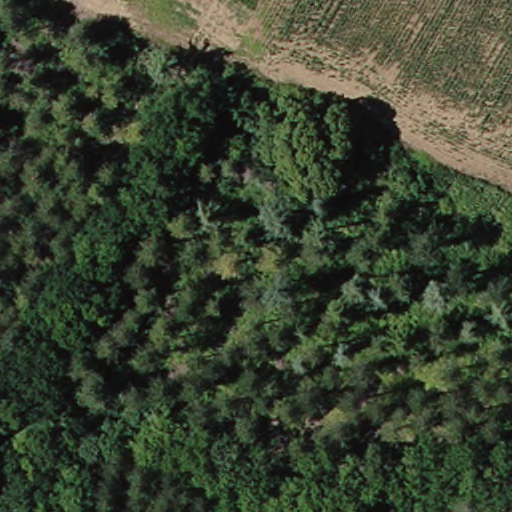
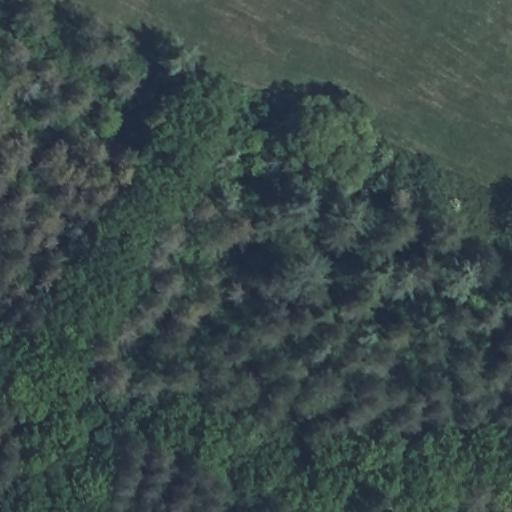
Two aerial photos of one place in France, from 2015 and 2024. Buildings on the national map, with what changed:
[]

